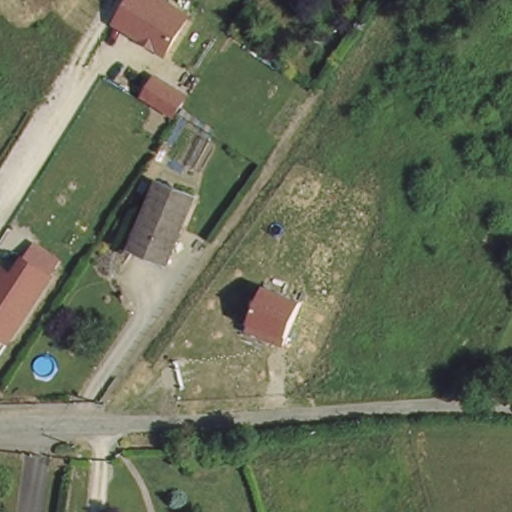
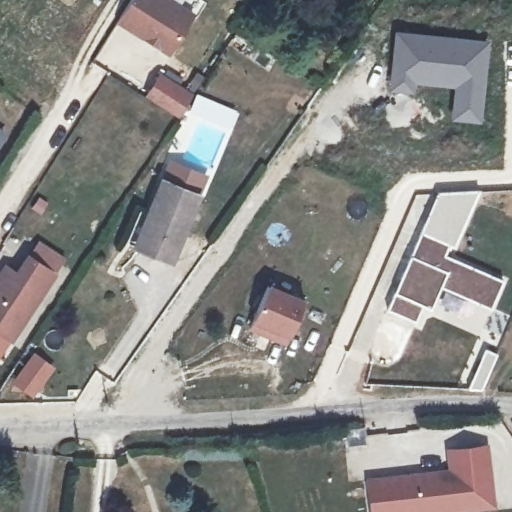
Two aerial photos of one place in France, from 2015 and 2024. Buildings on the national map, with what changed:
unchanged [(116,22),(131,0),(176,0),(197,13),(171,55),(116,22)]
new [(394,29),(492,41),(483,123),(449,120),(453,88),(418,85),(417,96),(388,92),(394,29)]
new [(152,75),(182,94),(170,114),(139,95),(152,75)]
new [(6,132),(0,141),(0,129),(6,132)]
unchanged [(164,257),(131,242),(161,177),(194,192),(164,257)]
new [(420,237),(440,191),(481,187),(459,244),(451,242),(448,249),(420,237)]
new [(393,298),(397,299),(403,286),(399,285),(420,237),(448,249),(443,261),(502,286),(490,315),(439,292),(430,314),(421,311),(414,327),(386,315),(393,298)]
unchanged [(16,344),(0,335),(0,275),(8,262),(18,270),(28,254),(60,274),(16,344)]
unchanged [(303,298),(286,344),(250,330),(267,284),(303,298)]
new [(487,351),(498,357),(481,390),(467,391),(487,351)]
new [(430,462),(428,441),(465,438),(467,460),(441,462),(443,479),(433,480),(435,501),(351,510),(347,471),(430,462)]
new [(443,479),(441,462),(467,460),(471,498),(435,501),(433,480),(443,479)]

